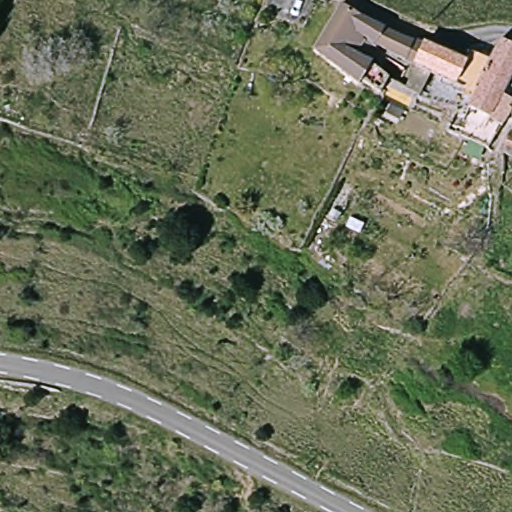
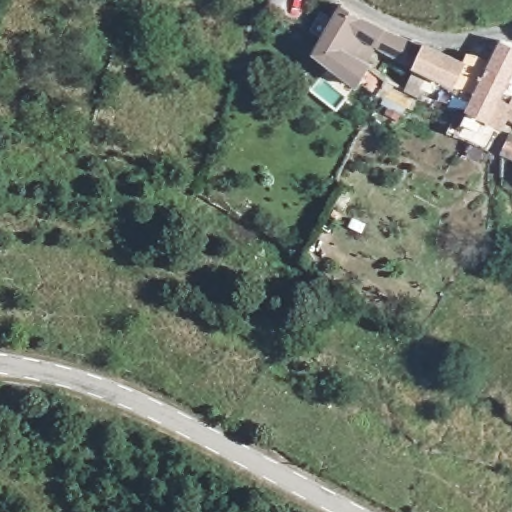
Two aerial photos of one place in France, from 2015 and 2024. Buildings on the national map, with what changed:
unchanged [(420,63),(368,39),(360,53),(382,65),(396,78),(390,88),(372,76),(367,82),(322,50),(346,4),(427,46),(420,63)]
unchanged [(465,94),(470,86),(420,63),(427,46),(467,61),(470,54),(493,65),(475,98),(465,94)]
unchanged [(512,50),(512,120),(508,118),(506,123),(472,106),(475,98),(493,65),(503,46),(512,50)]
unchanged [(412,84),(418,69),(432,75),(427,90),(412,84)]
unchanged [(505,160),(505,150),(512,132),(512,166),(505,160)]

